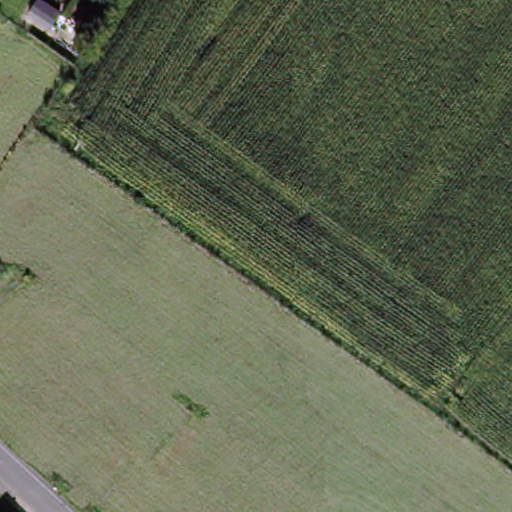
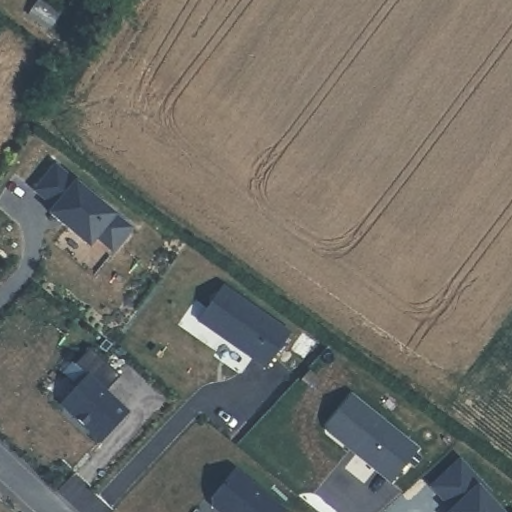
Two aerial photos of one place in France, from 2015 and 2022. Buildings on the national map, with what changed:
new [(54,169),(131,230),(112,253),(96,241),(90,249),(50,217),(54,211),(34,194),(54,169)]
new [(199,321),(222,286),(289,332),(266,366),(232,343),(226,339),(199,321)]
new [(82,375),(71,364),(86,347),(118,377),(104,392),(127,414),(99,445),(56,405),(82,375)]
new [(352,398),(416,449),(391,481),(331,433),(330,427),(352,398)]
new [(458,462),(487,495),(483,498),(496,512),(449,512),(451,511),(429,488),(458,462)]
new [(208,499),(232,469),(287,512),(286,512),(217,512),(209,506),(208,499)]

